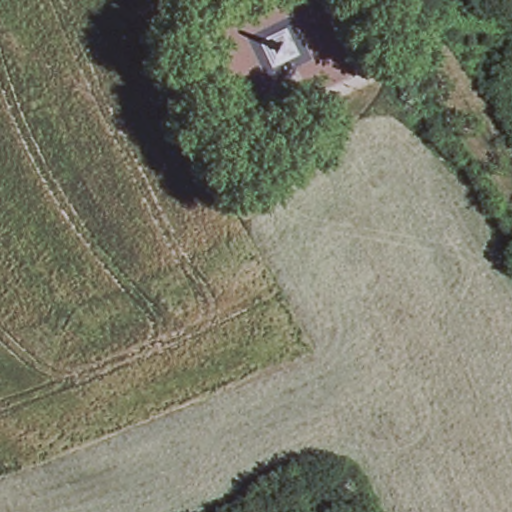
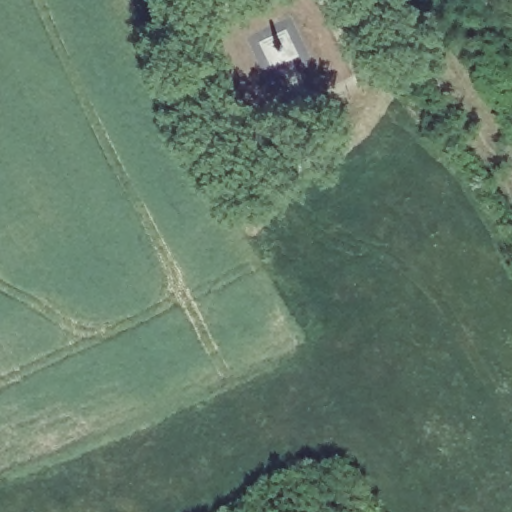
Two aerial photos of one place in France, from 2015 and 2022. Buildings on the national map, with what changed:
unchanged [(287,25),(301,52),(274,66),(261,38),(287,25)]

